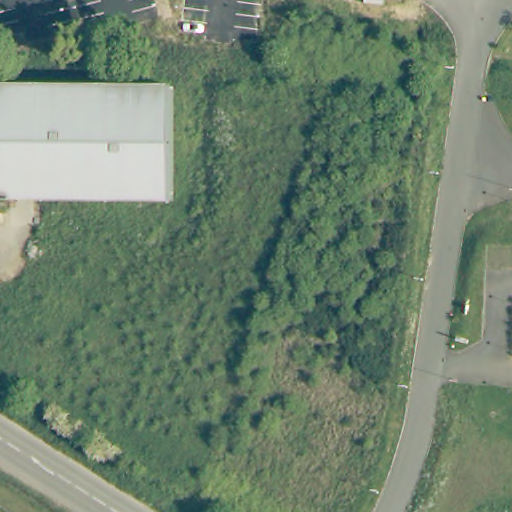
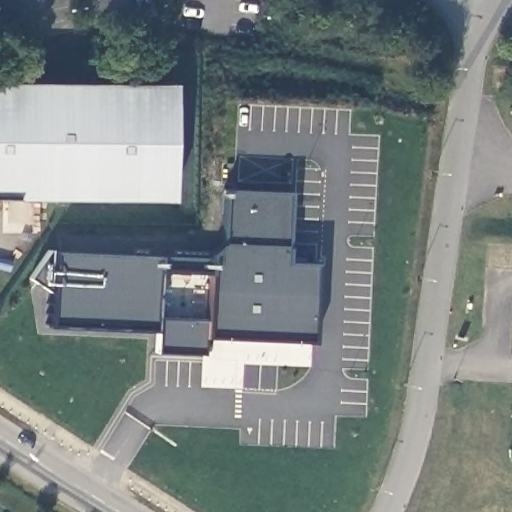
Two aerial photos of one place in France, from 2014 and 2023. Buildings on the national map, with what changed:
unchanged [(171,193),(0,191),(0,78),(172,80),(171,193)]
new [(53,292),(29,278),(46,254),(55,254),(211,259),(212,253),(223,244),(224,190),(287,194),(284,263),(314,265),(312,339),(203,334),(203,353),(157,352),(158,329),(50,324),(53,292)]

